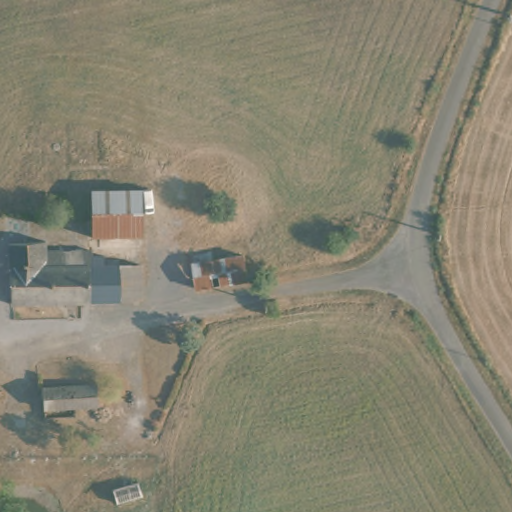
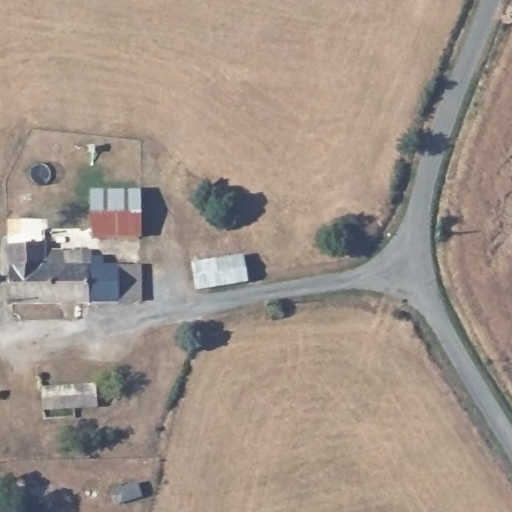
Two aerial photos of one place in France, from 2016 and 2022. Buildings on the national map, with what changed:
unchanged [(139,191),(139,206),(139,236),(137,236),(93,234),(95,191),(139,191)]
unchanged [(44,250),(92,250),(104,252),(105,265),(138,264),(136,299),(97,301),(79,301),(6,302),(5,243),(44,243),(44,250)]
unchanged [(242,252),(246,274),(247,277),(196,287),(193,262),(242,252)]
unchanged [(96,382),(99,408),(44,412),(42,388),(96,382)]
unchanged [(138,482),(144,497),(118,507),(112,490),(138,482)]

